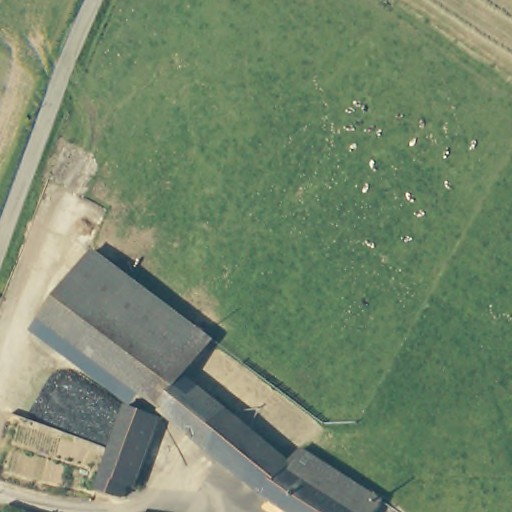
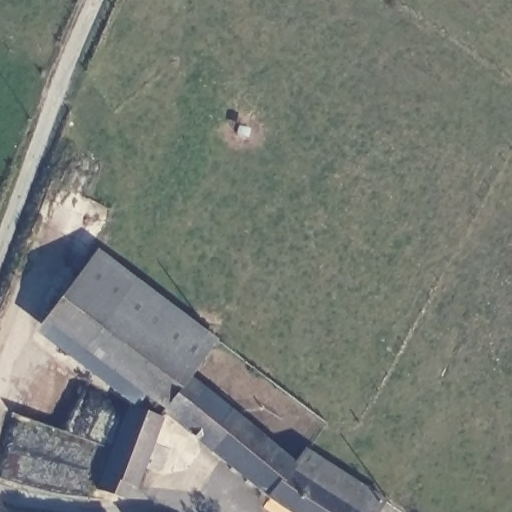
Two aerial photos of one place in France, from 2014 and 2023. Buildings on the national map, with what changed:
unchanged [(214,340),(187,377),(162,408),(142,393),(44,319),(96,250),(214,340)]
unchanged [(303,450),(383,501),(376,512),(290,512),(268,498),(162,408),(187,377),(293,463),(303,450)]
unchanged [(158,423),(134,489),(128,485),(125,498),(95,489),(127,405),(158,423)]

